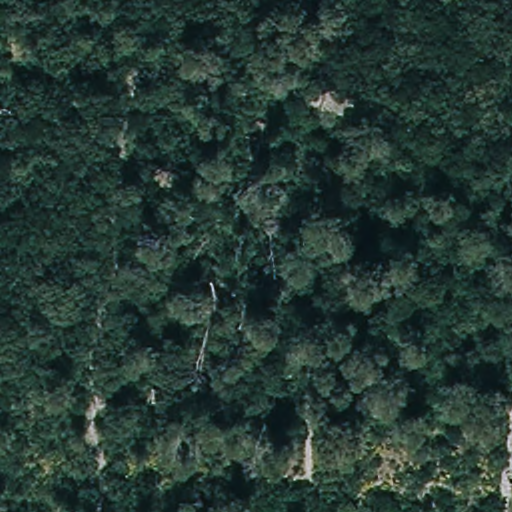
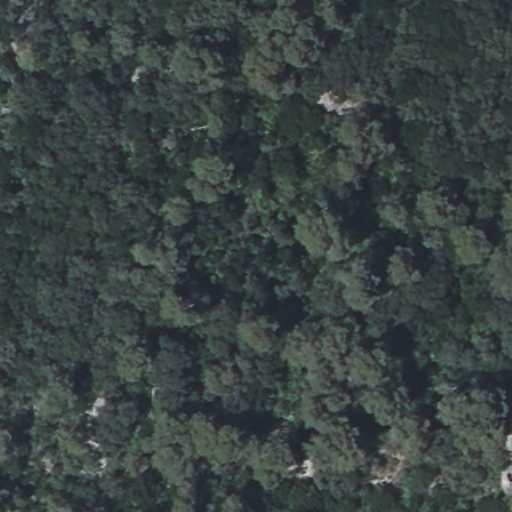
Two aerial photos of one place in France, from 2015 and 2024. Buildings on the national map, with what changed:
unchanged [(174,385),(173,403),(152,403),(152,386),(174,385)]

